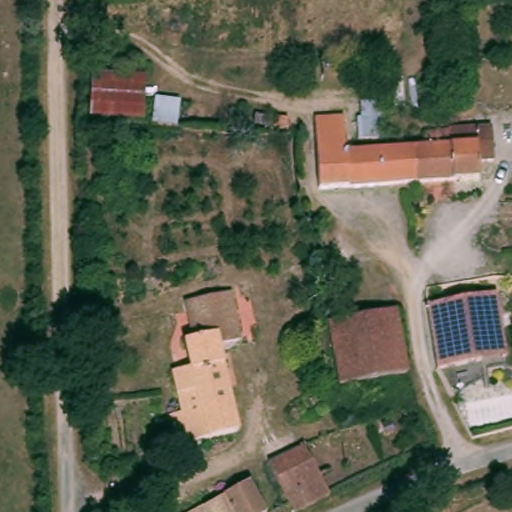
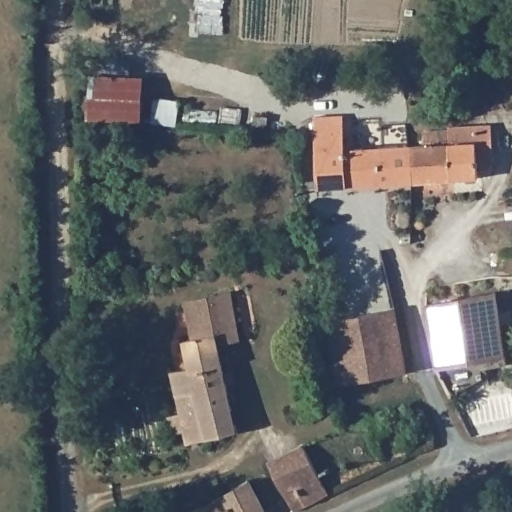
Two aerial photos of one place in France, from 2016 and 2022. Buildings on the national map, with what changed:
unchanged [(142,121),(91,119),(95,77),(145,81),(142,121)]
unchanged [(285,109),(295,110),(295,121),(283,120),(285,109)]
unchanged [(320,120),(326,120),(337,120),(343,120),(356,122),(358,149),(377,147),(379,184),(317,188),(312,119),(320,120)]
unchanged [(486,124),(490,158),(475,160),(475,177),(447,179),(444,133),(443,128),(456,127),(471,126),(486,124)]
unchanged [(420,145),(420,135),(444,133),(447,179),(411,182),(410,164),(408,145),(420,145)]
unchanged [(408,145),(410,164),(411,182),(379,184),(377,147),(408,145)]
unchanged [(182,333),(187,332),(182,304),(231,292),(234,300),(225,302),(211,305),(216,326),(193,329),(197,348),(188,349),(182,333)]
unchanged [(427,308),(496,296),(505,360),(436,373),(427,308)]
unchanged [(186,445),(185,436),(173,438),(170,421),(182,419),(181,414),(174,379),(193,375),(188,349),(197,348),(193,329),(206,326),(215,324),(212,311),(211,305),(225,302),(234,300),(244,346),(221,351),(239,437),(187,448),(186,445)]
unchanged [(336,391),(327,324),(395,313),(405,376),(336,391)]
unchanged [(281,493),(265,464),(274,460),(300,447),(316,477),(326,494),(327,497),(297,512),(292,512),(291,511),(281,493)]
unchanged [(198,512),(208,507),(209,509),(255,485),(269,512),(198,512)]

